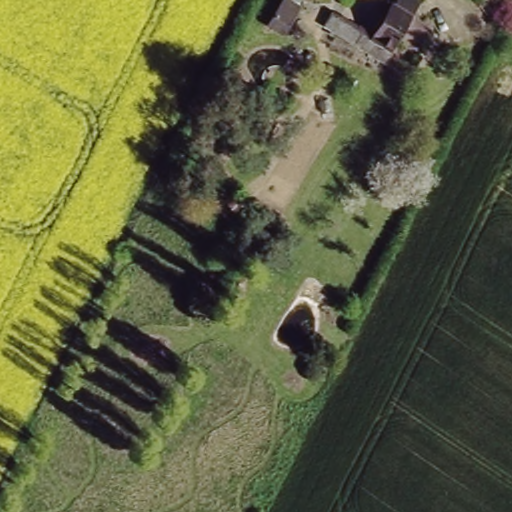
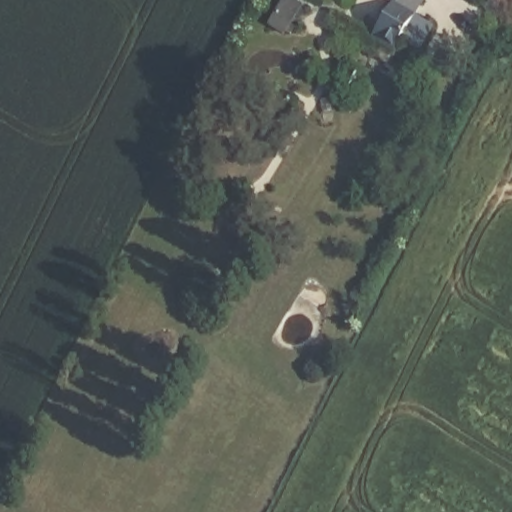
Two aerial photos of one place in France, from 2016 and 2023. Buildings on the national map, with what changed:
unchanged [(305,11),(288,39),(268,26),(285,0),(288,0),(305,11)]
unchanged [(415,51),(399,42),(387,62),(332,31),(340,19),(374,38),(387,18),(377,12),(383,3),(392,8),(397,0),(414,0),(422,5),(413,18),(429,28),(415,51)]
unchanged [(250,94),(241,111),(229,105),(238,87),(250,94)]

